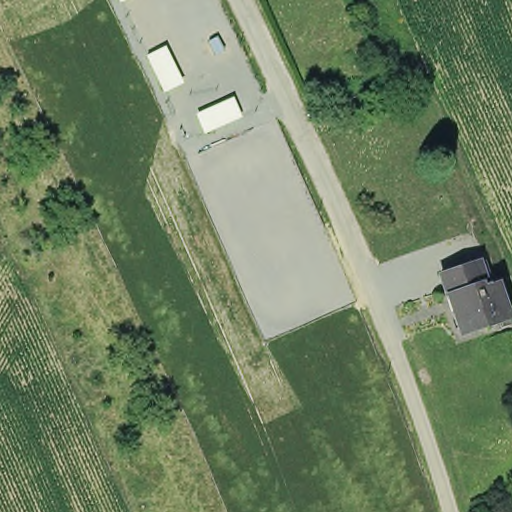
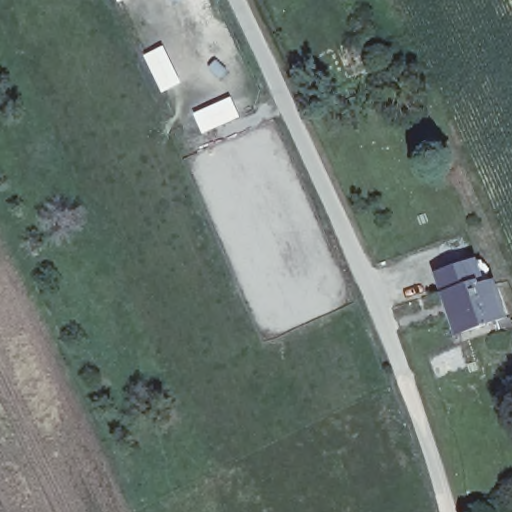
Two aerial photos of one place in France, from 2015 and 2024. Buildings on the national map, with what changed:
unchanged [(451,304),(442,284),(449,281),(476,267),(488,295),(497,292),(503,297),(512,316),(512,321),(475,338),(463,344),(453,324),(462,321),(455,303),(451,304)]

